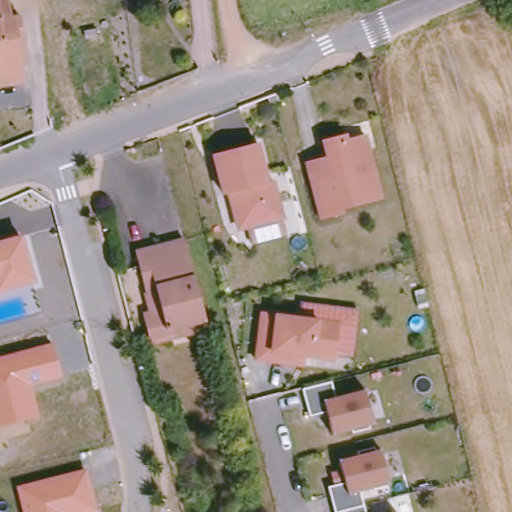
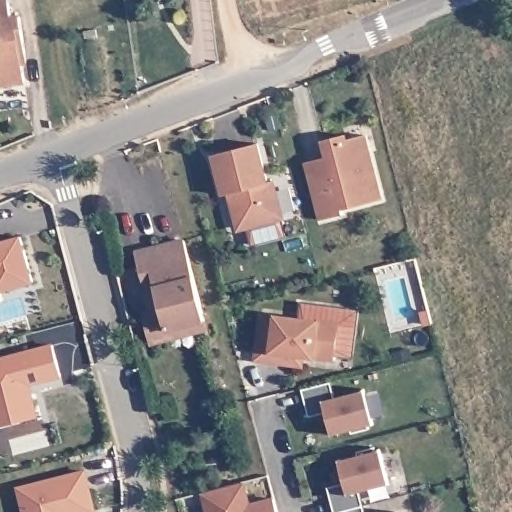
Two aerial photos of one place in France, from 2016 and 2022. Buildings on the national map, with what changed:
unchanged [(0,0),(4,0),(6,14),(18,12),(22,50),(19,51),(22,79),(0,82),(0,0)]
unchanged [(331,143),(346,140),(347,144),(365,140),(382,204),(349,212),(342,214),(343,219),(322,224),(312,190),(334,185),(330,172),(327,163),(323,145),(331,143)]
unchanged [(218,158),(247,150),(258,148),(267,186),(274,185),(283,223),(266,227),(246,232),(236,226),(234,226),(231,212),(232,211),(236,206),(234,196),(228,198),(224,199),(213,159),(218,158)]
unchanged [(36,282),(0,292),(0,241),(21,235),(36,282)]
unchanged [(170,332),(172,342),(153,347),(146,318),(158,315),(156,306),(152,307),(140,254),(187,242),(208,322),(170,332)]
unchanged [(336,323),(300,319),(301,303),(358,310),(351,357),(332,354),(336,323)]
unchanged [(300,365),(287,364),(271,362),(252,360),(258,314),(259,314),(290,318),(336,323),(332,360),(301,356),(300,361),(300,365)]
unchanged [(62,377),(30,386),(37,416),(0,426),(0,357),(52,344),(62,377)]
unchanged [(307,387),(329,382),(333,398),(363,391),(371,422),(366,423),(367,428),(350,433),(349,427),(329,432),(324,411),(313,414),(307,415),(300,389),(307,387)]
unchanged [(336,486),(348,483),(342,462),(362,457),(360,452),(377,447),(379,452),(384,451),(392,482),(362,490),(366,506),(367,512),(337,512),(331,488),(336,486)]
unchanged [(87,470),(96,511),(91,512),(23,512),(17,487),(87,470)]
new [(245,482),(251,503),(273,497),(277,512),(206,512),(202,494),(245,482)]

